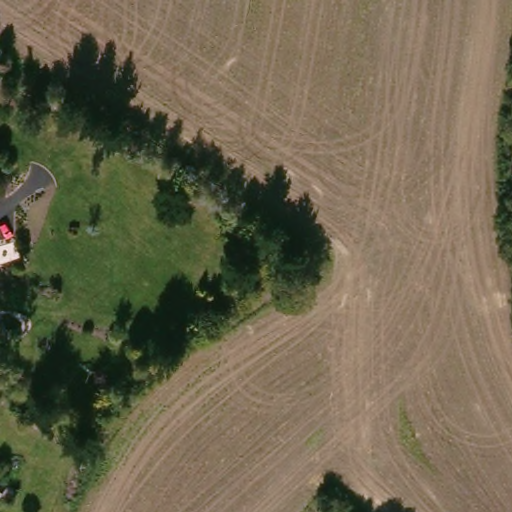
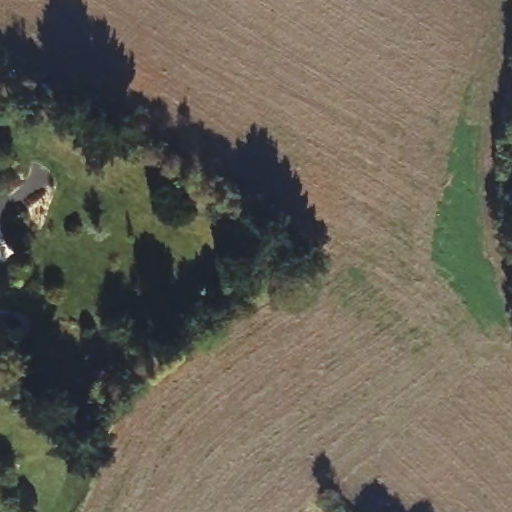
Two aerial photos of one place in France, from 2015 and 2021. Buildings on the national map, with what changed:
unchanged [(3,492),(0,495),(0,490),(2,491),(3,492)]

